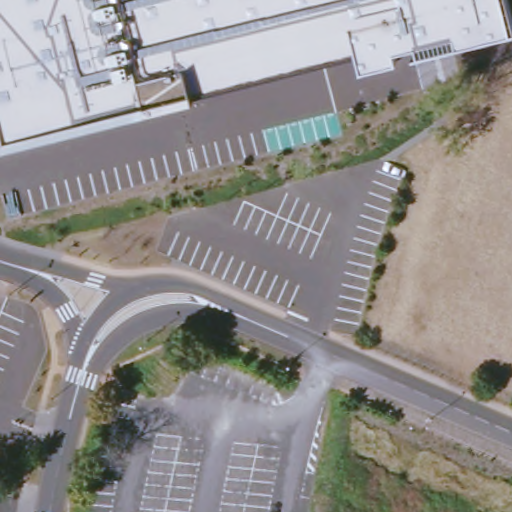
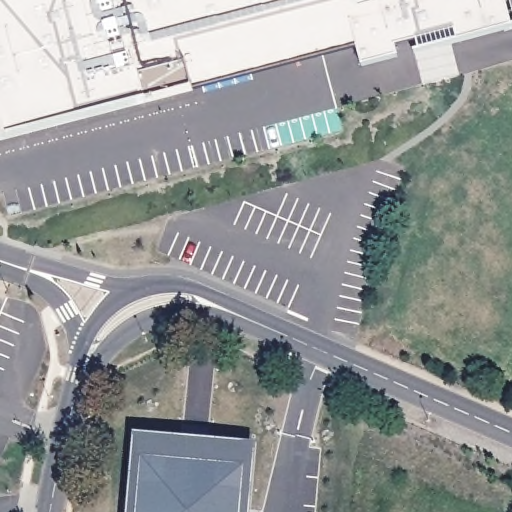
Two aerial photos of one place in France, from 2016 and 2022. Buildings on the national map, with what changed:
unchanged [(457,44),(454,34),(395,49),(397,59),(361,69),(350,28),(167,75),(175,103),(0,148),(0,0),(508,0),(512,14),(512,30),(457,44)]
new [(135,432),(258,443),(253,512),(241,512),(245,466),(143,459),(139,512),(128,512),(135,432)]
new [(143,459),(245,466),(241,512),(139,512),(143,459)]

